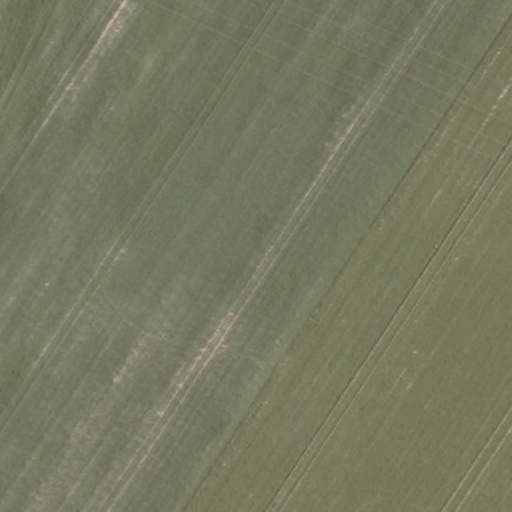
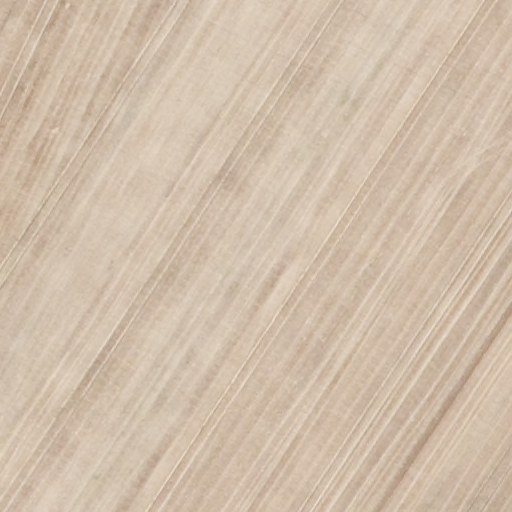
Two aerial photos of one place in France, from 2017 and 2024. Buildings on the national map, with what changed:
[]

